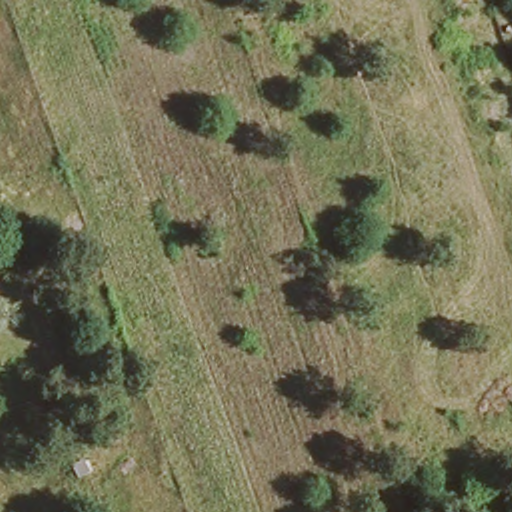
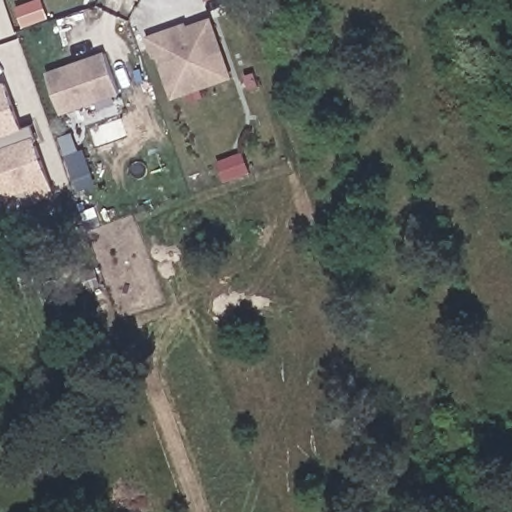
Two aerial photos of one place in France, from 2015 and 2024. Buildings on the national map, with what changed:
new [(173,100),(158,56),(154,58),(147,35),(187,21),(189,25),(213,17),(234,77),(173,100)]
new [(62,115),(46,71),(105,51),(120,94),(62,115)]
new [(23,120),(48,186),(31,192),(33,197),(7,206),(0,187),(0,79),(15,122),(23,120)]
new [(33,134),(29,135),(23,120),(28,119),(33,134)]

